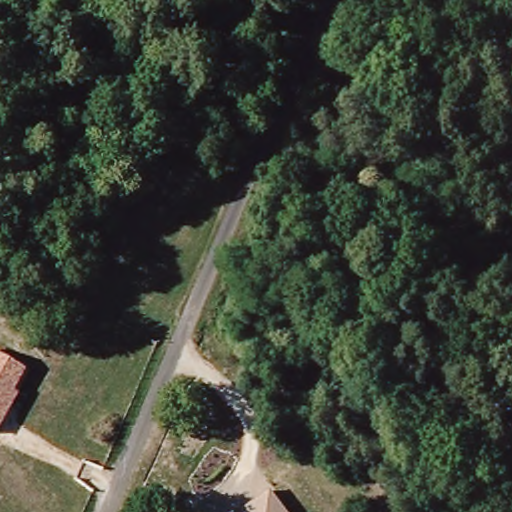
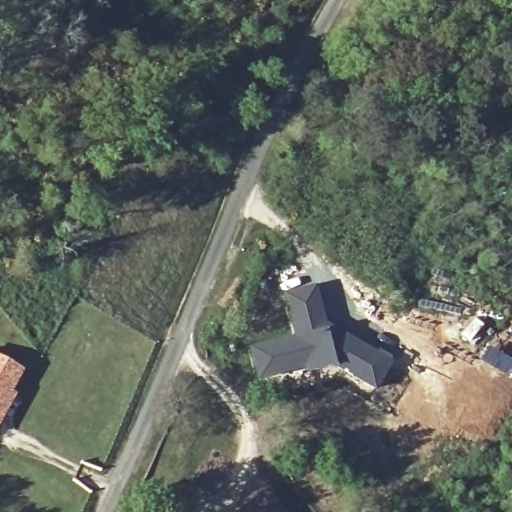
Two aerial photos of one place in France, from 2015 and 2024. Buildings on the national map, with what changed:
new [(314,287),(324,323),(390,363),(372,390),(333,364),(256,380),(248,349),(293,338),(282,294),(314,287)]
unchanged [(12,391),(18,396),(0,430),(0,357),(23,369),(12,391)]
unchanged [(237,512),(270,489),(287,512),(237,512)]

